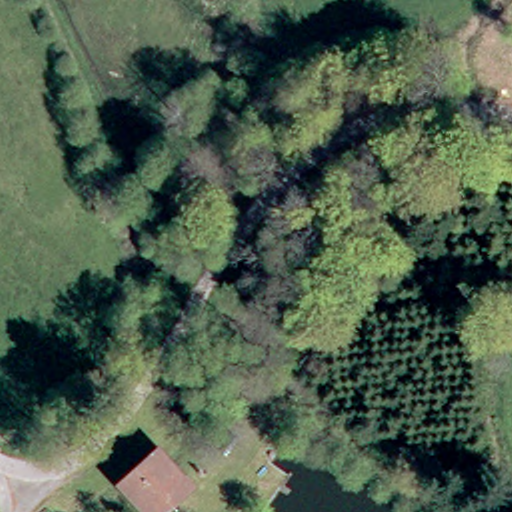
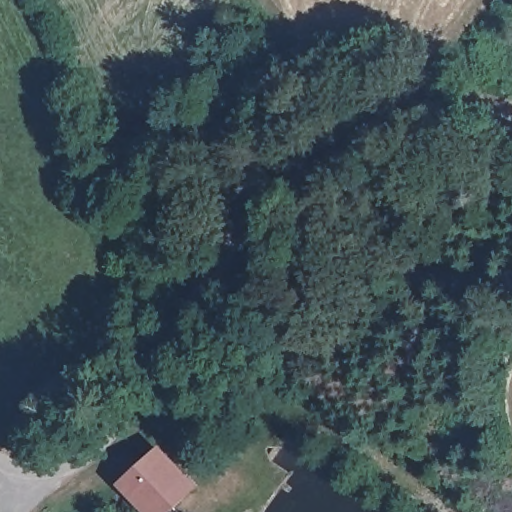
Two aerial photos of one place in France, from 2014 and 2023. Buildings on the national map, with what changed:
unchanged [(181,512),(157,512),(136,483),(173,455),(196,484),(203,494),(181,512)]

